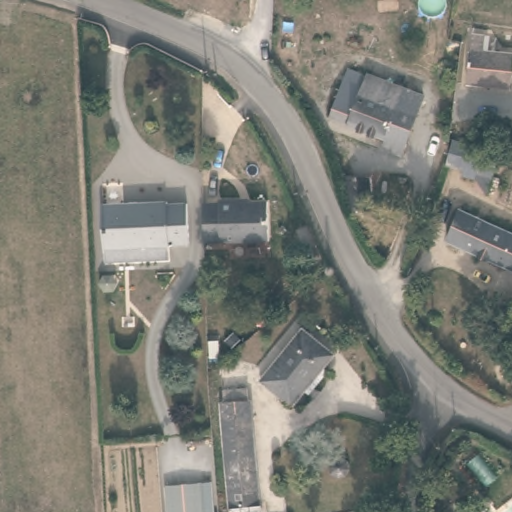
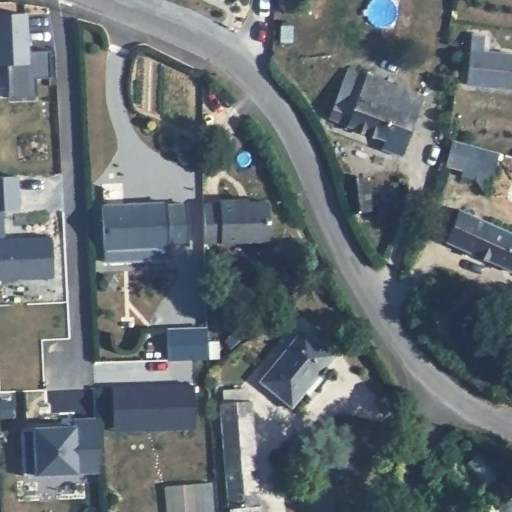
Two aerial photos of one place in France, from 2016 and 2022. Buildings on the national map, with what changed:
new [(27,51),(50,50),(51,77),(35,78),(36,96),(10,97),(8,62),(0,62),(0,13),(25,12),(27,51)]
unchanged [(469,33),(481,35),(480,50),(512,53),(512,63),(510,88),(464,84),(469,33)]
unchanged [(386,149),(390,140),(331,117),(350,69),(368,76),(370,74),(425,96),(406,147),(406,146),(403,155),(386,149)]
unchanged [(455,135),(472,140),(482,143),(501,148),(495,172),(480,169),(478,175),(468,172),(463,171),(465,165),(448,160),(455,135)]
unchanged [(351,210),(347,171),(370,169),(374,207),(367,207),(368,220),(357,220),(356,209),(351,210)]
unchanged [(208,200),(223,199),(223,196),(241,195),(241,199),(271,197),(272,238),(210,240),(208,200)]
unchanged [(104,264),(104,252),(101,207),(165,204),(166,206),(186,205),(188,245),(167,246),(167,249),(166,249),(167,261),(104,264)]
unchanged [(493,229),(512,237),(512,276),(495,267),(481,260),(448,246),(462,215),(493,229)]
new [(52,277),(0,280),(0,239),(51,236),(52,277)]
unchanged [(312,392),(307,388),(295,404),(263,378),(306,325),(337,351),(327,364),(331,367),(312,392)]
new [(168,360),(166,327),(207,326),(207,341),(220,340),(221,359),(168,360)]
new [(111,387),(193,384),(194,428),(114,431),(111,387)]
unchanged [(251,440),(255,472),(257,494),(258,506),(229,508),(220,405),(222,405),(221,393),(246,391),(247,403),(249,403),(251,440)]
new [(74,425),(72,418),(96,417),(98,471),(24,475),(22,428),(74,425)]
unchanged [(333,463),(336,458),(343,456),(350,460),(351,466),(347,472),(340,474),(335,470),(333,463)]
unchanged [(165,487),(200,485),(202,512),(166,512),(165,487)]
unchanged [(200,485),(210,485),(212,512),(202,512),(200,485)]
unchanged [(229,510),(258,508),(259,512),(229,512),(229,510)]

